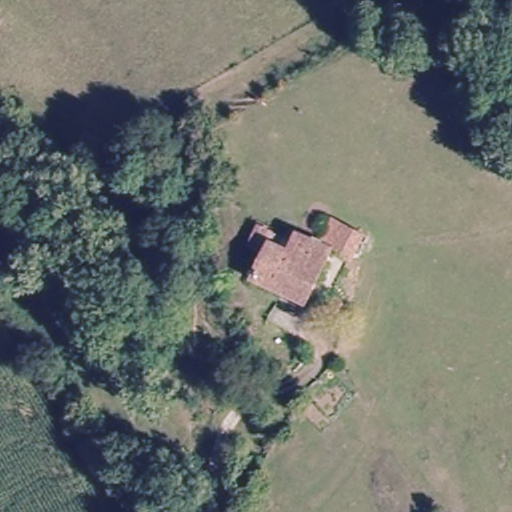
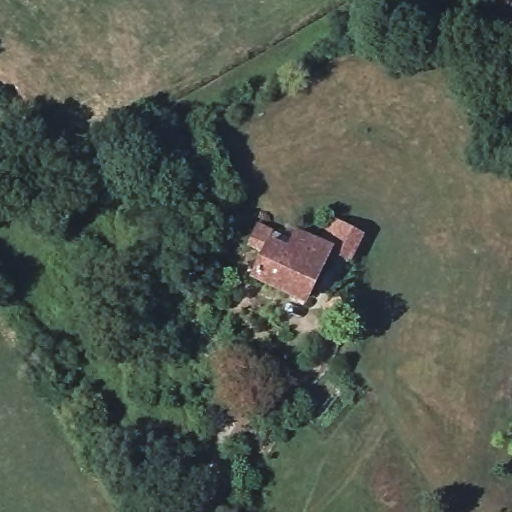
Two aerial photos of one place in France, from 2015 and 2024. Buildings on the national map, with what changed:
unchanged [(254,271),(256,264),(261,246),(247,242),(252,224),(265,228),(278,232),(276,241),(291,245),(293,236),(295,230),(316,236),(324,238),(320,250),(307,287),(254,271)]

